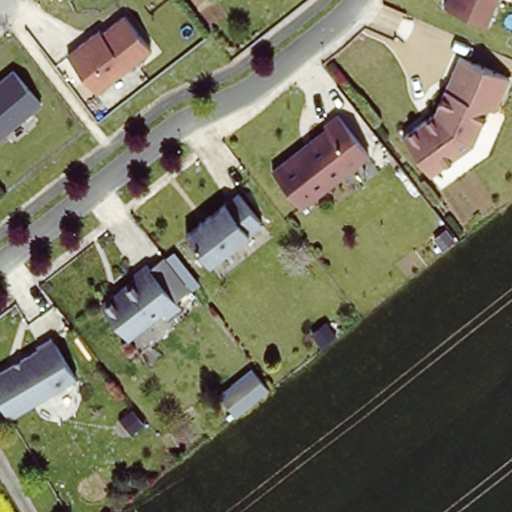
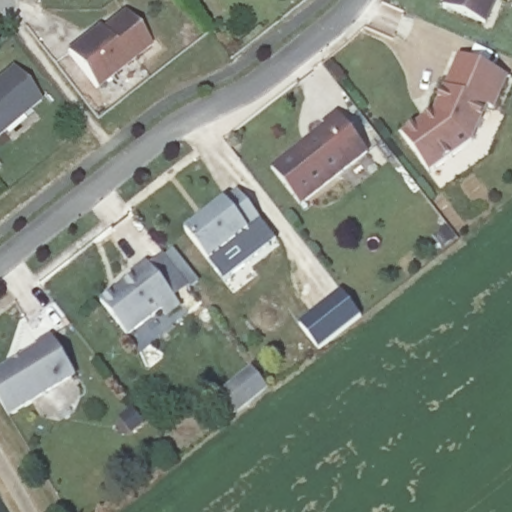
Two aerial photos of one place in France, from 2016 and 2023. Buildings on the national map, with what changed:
unchanged [(485,24),(443,5),(445,0),(496,0),(485,24)]
unchanged [(99,28),(103,32),(123,12),(152,48),(93,89),(66,54),(99,28)]
unchanged [(498,110),(492,108),(474,144),(431,175),(403,135),(436,113),(464,54),(512,78),(512,82),(498,110)]
unchanged [(0,137),(0,79),(13,68),(43,102),(0,137)]
unchanged [(369,153),(301,205),(274,169),(329,127),(326,124),(339,114),(369,153)]
unchanged [(263,222),(209,263),(186,233),(239,192),(263,222)]
unchanged [(199,283),(174,300),(150,268),(175,249),(199,283)]
unchanged [(179,307),(166,317),(161,311),(126,337),(100,302),(134,277),(131,274),(146,263),(179,307)]
new [(342,292),(361,317),(319,350),(301,324),(342,292)]
unchanged [(0,397),(0,366),(38,344),(37,341),(51,332),(75,372),(9,412),(0,397)]
unchanged [(235,417),(217,393),(251,367),(269,389),(235,417)]

